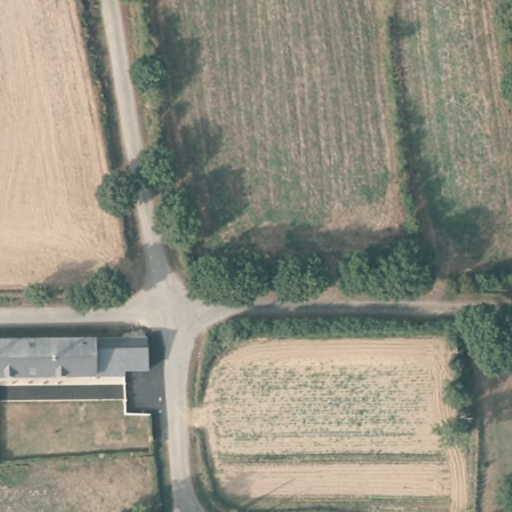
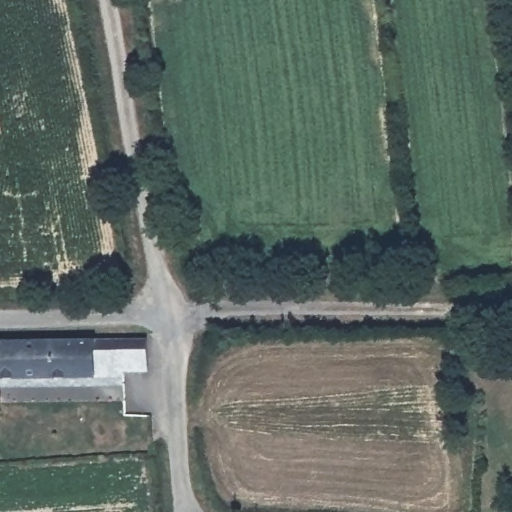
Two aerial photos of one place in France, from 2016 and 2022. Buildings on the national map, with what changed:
unchanged [(0,372),(0,338),(127,336),(146,336),(146,373),(127,373),(127,353),(100,353),(98,372),(0,372)]

